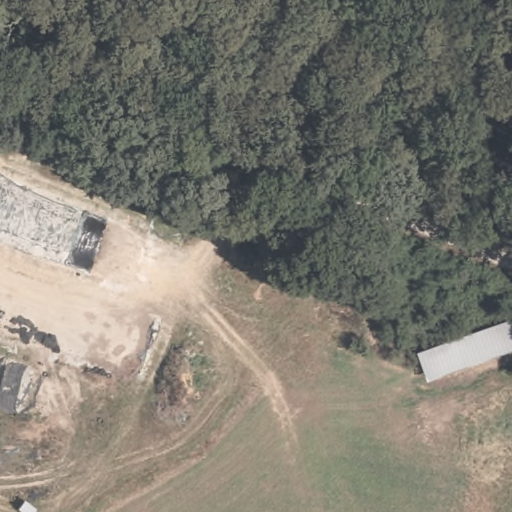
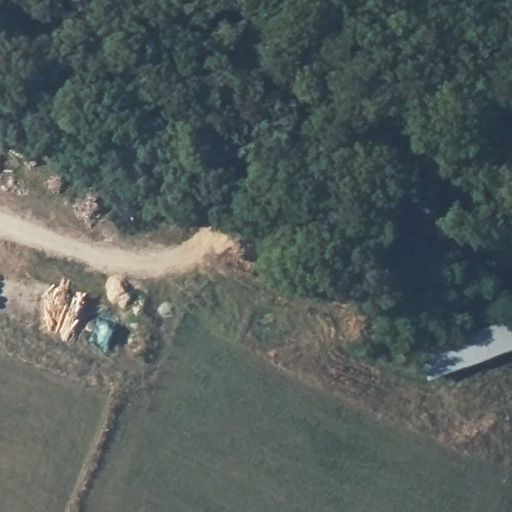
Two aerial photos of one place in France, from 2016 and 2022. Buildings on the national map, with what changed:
unchanged [(512,317),(512,349),(429,381),(418,353),(512,317)]

